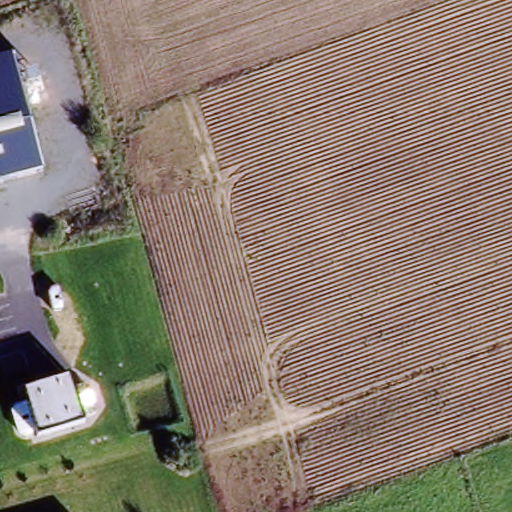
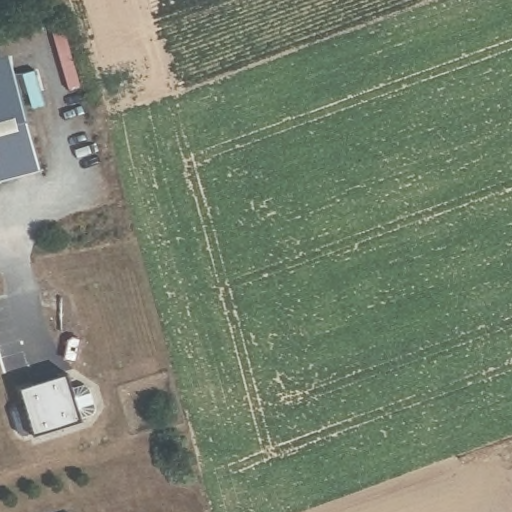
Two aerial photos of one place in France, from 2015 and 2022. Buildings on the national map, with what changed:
unchanged [(0,60),(11,57),(42,172),(0,184),(0,60)]
unchanged [(68,378),(72,390),(90,387),(96,408),(78,412),(82,425),(35,438),(33,432),(22,436),(17,433),(11,413),(13,407),(25,404),(22,391),(68,378)]

